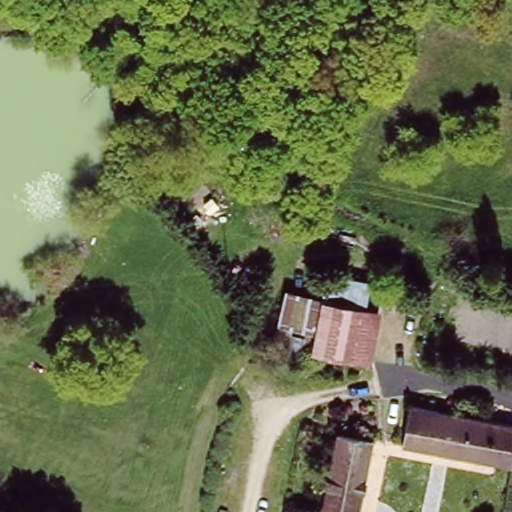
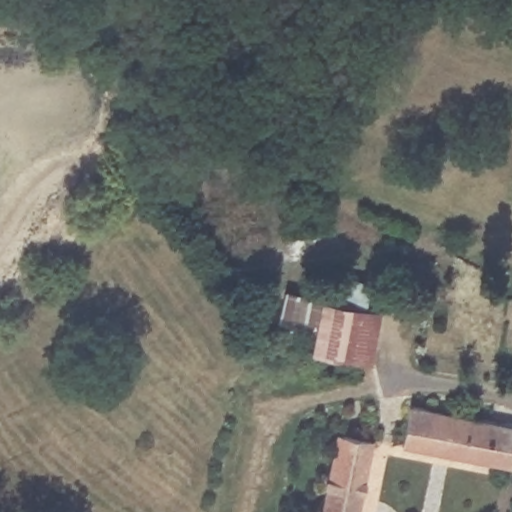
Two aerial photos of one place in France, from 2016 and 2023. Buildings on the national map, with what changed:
unchanged [(310,351),(272,346),(276,322),(285,288),(320,296),(325,271),(372,279),(366,306),(380,309),(372,361),(310,351)]
unchanged [(512,429),(512,452),(509,467),(400,443),(408,406),(512,429)]
unchanged [(373,440),(359,512),(322,512),(339,434),(373,440)]

